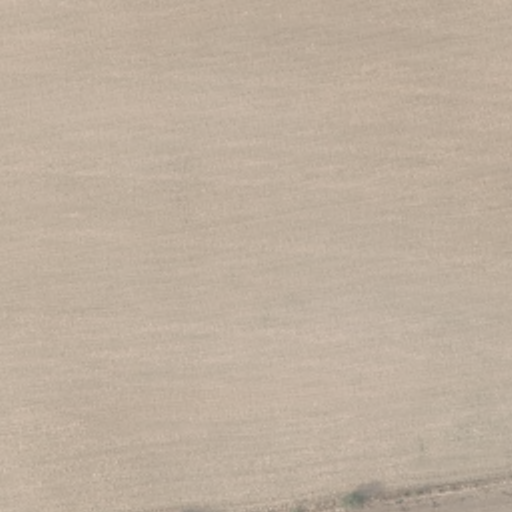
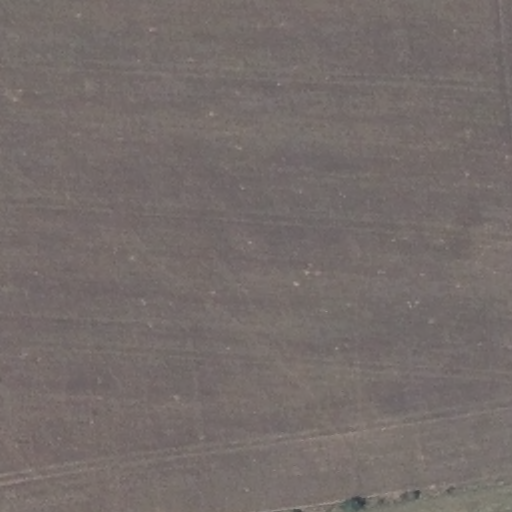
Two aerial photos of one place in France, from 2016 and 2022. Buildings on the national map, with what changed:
[]

